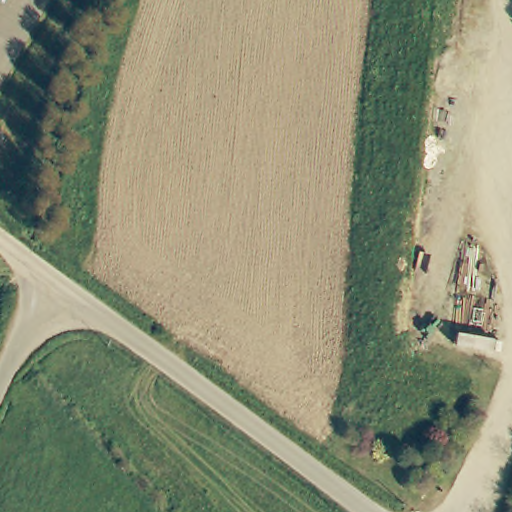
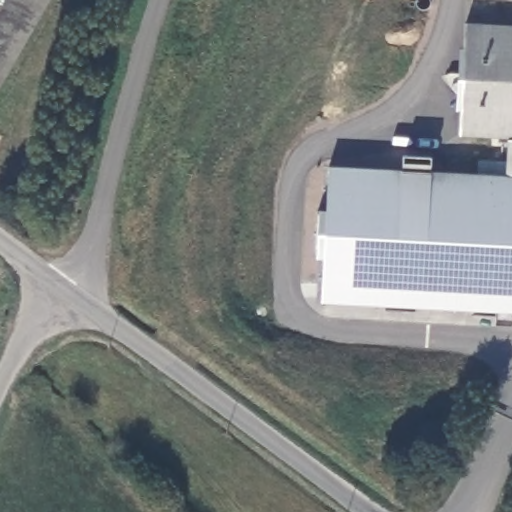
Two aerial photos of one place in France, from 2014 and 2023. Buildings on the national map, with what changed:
unchanged [(0,86),(0,0),(49,0),(0,86)]
new [(324,259),(317,258),(319,209),(327,210),(329,165),(402,170),(403,163),(403,155),(432,156),(432,164),(431,171),(475,173),(477,160),(507,162),(507,138),(459,136),(461,111),(456,110),(460,47),(465,48),(466,22),(512,25),(512,313),(321,303),(324,259)]

